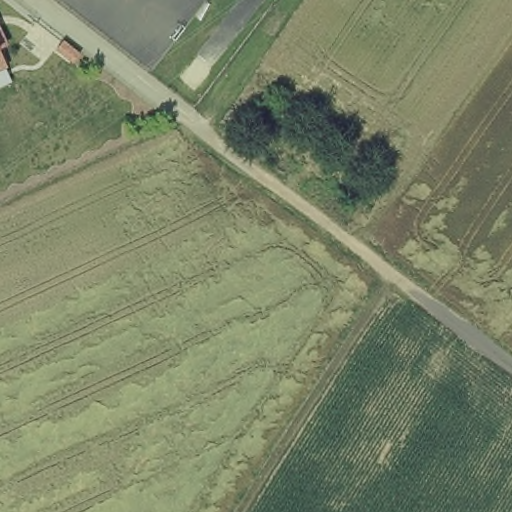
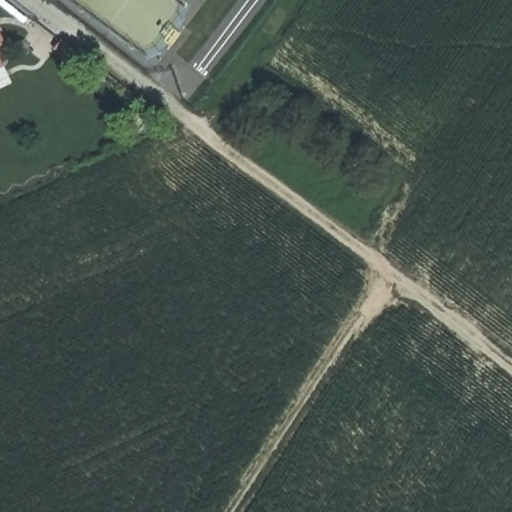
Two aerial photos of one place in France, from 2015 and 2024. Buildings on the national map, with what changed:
unchanged [(0,49),(0,29),(7,45),(0,49)]
unchanged [(3,69),(10,82),(0,86),(0,53),(7,67),(3,69)]

